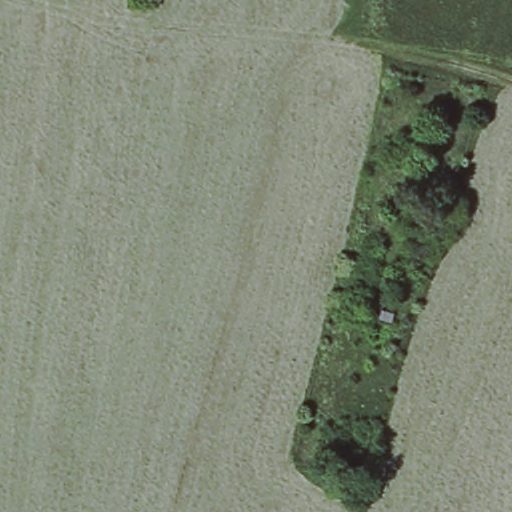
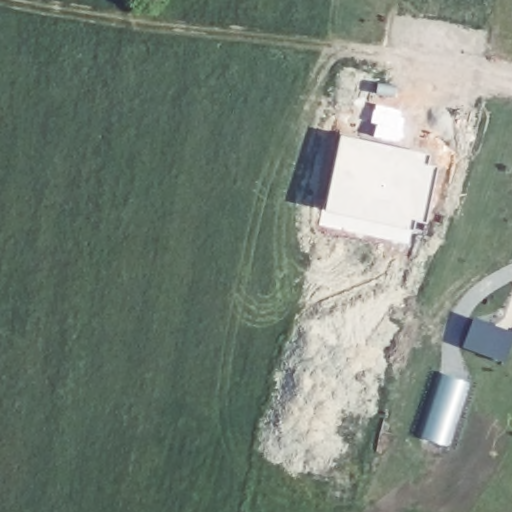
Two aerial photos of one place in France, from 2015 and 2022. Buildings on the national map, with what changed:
new [(342,136),(431,155),(429,165),(438,167),(428,226),(418,224),(415,231),(326,210),(342,136)]
new [(474,321),(511,335),(503,357),(465,344),(474,321)]

